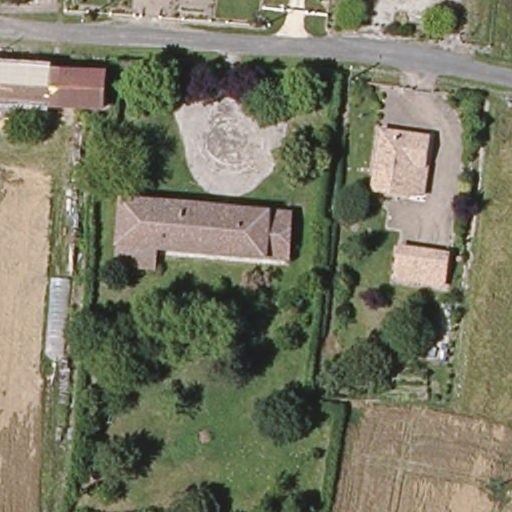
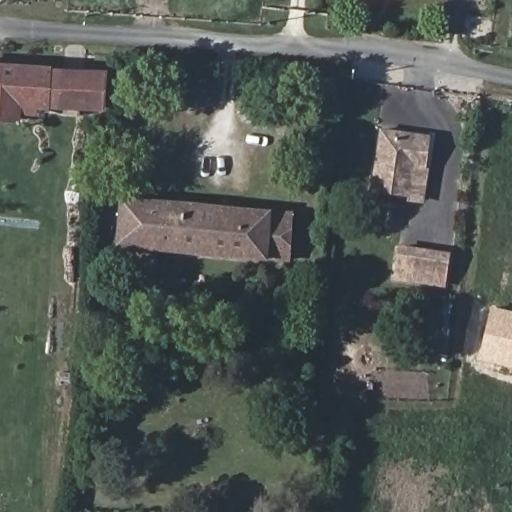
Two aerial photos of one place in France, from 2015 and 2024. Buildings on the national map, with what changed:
unchanged [(96,74),(94,109),(0,100),(0,66),(96,74)]
unchanged [(424,195),(411,195),(387,191),(375,190),(380,132),(397,133),(427,136),(425,167),(426,167),(424,195)]
unchanged [(119,262),(126,200),(305,216),(305,234),(291,234),(289,260),(161,246),(161,254),(151,254),(147,266),(132,266),(119,262)]
unchanged [(447,256),(444,285),(395,279),(397,250),(447,256)]
new [(491,306),(512,311),(512,367),(478,359),(491,306)]

